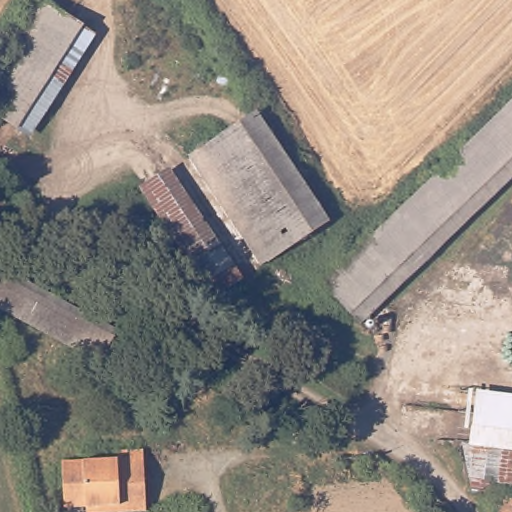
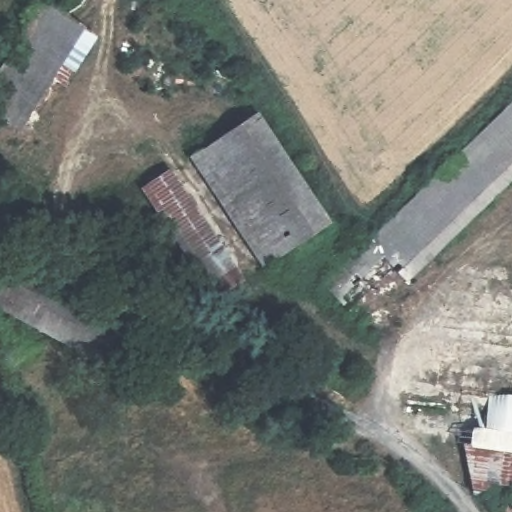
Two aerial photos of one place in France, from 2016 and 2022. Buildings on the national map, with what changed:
unchanged [(42,0),(46,0),(97,33),(34,137),(0,115),(0,66),(42,0)]
unchanged [(326,280),(512,97),(512,178),(363,321),(326,280)]
unchanged [(332,219),(262,265),(190,154),(257,110),(332,219)]
unchanged [(245,275),(216,294),(141,185),(170,165),(245,275)]
unchanged [(38,327),(0,307),(0,288),(8,272),(36,287),(38,327)]
unchanged [(36,287),(72,307),(55,336),(46,331),(38,327),(36,287)]
unchanged [(116,330),(97,359),(55,336),(72,307),(116,330)]
unchanged [(480,483),(467,481),(447,439),(491,447),(488,479),(485,481),(480,483)]
demolished [(116,461),(116,452),(142,452),(144,496),(117,496),(117,506),(87,507),(64,507),(62,463),(116,461)]
demolished [(380,480),(380,493),(338,493),(337,481),(380,480)]
demolished [(453,507),(456,512),(442,512),(453,507)]

